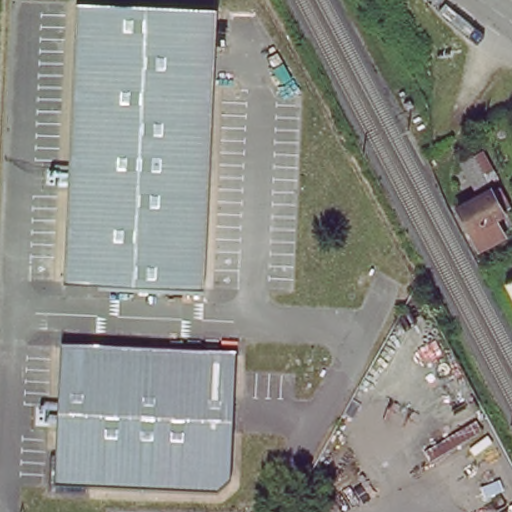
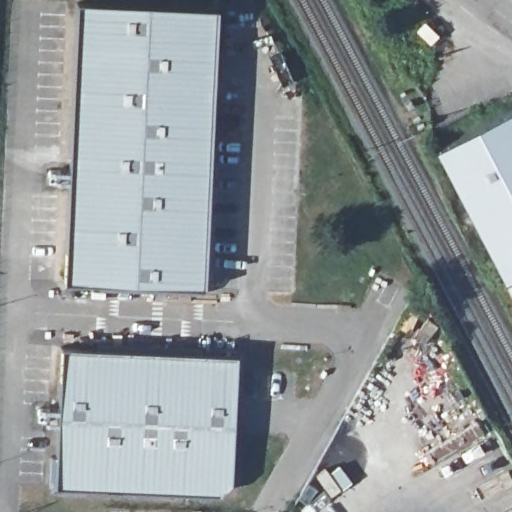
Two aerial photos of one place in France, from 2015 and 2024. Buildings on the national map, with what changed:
unchanged [(217,3),(207,290),(99,286),(100,278),(65,277),(79,0),(110,0),(217,3)]
new [(435,150),(512,110),(512,276),(503,281),(435,150)]
demolished [(484,185),(473,192),(460,170),(456,162),(467,157),(484,185)]
demolished [(467,234),(459,218),(455,210),(495,188),(507,212),(492,221),(502,239),(480,251),(467,234)]
unchanged [(503,281),(512,276),(512,299),(503,281)]
unchanged [(49,455),(55,455),(60,345),(95,347),(96,341),(202,346),(202,353),(239,354),(234,475),(218,496),(85,489),(84,495),(47,493),(49,455)]

